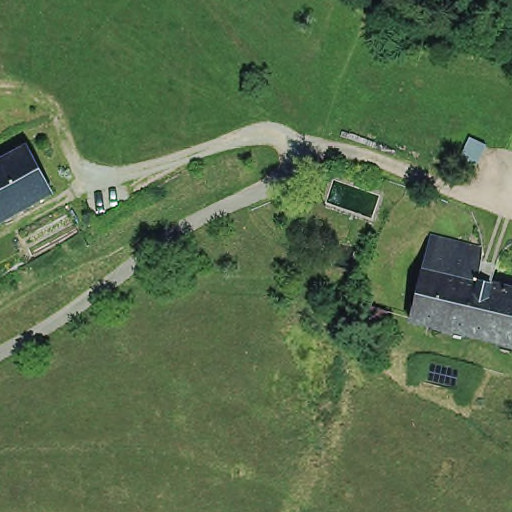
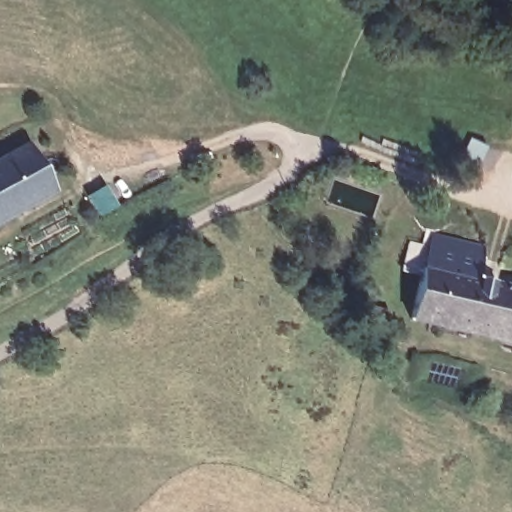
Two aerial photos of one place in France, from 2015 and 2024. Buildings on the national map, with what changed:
unchanged [(0,162),(25,149),(50,194),(0,221),(0,162)]
unchanged [(476,246),(468,279),(425,268),(433,235),(476,246)]
unchanged [(412,319),(425,268),(468,279),(496,285),(483,338),(412,319)]
unchanged [(483,338),(496,285),(512,289),(512,345),(483,338)]
unchanged [(383,335),(355,327),(362,304),(363,295),(376,299),(374,307),(390,312),(383,335)]

